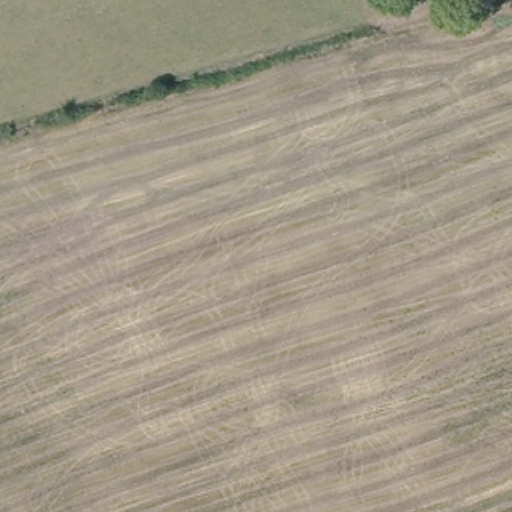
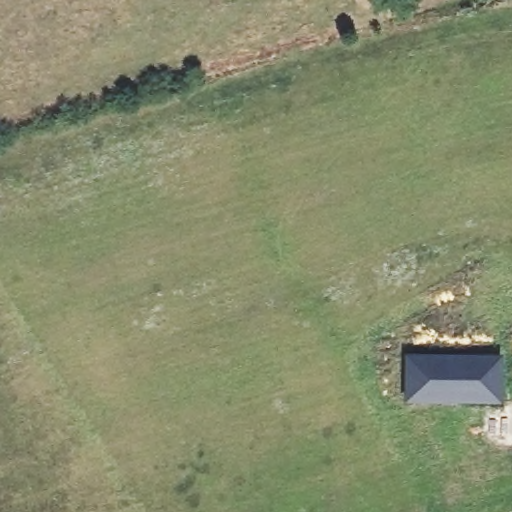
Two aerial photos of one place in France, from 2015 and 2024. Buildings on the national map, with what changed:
new [(405,354),(503,354),(502,404),(403,403),(405,354)]
new [(510,403),(512,404),(512,435),(508,434),(510,403)]

